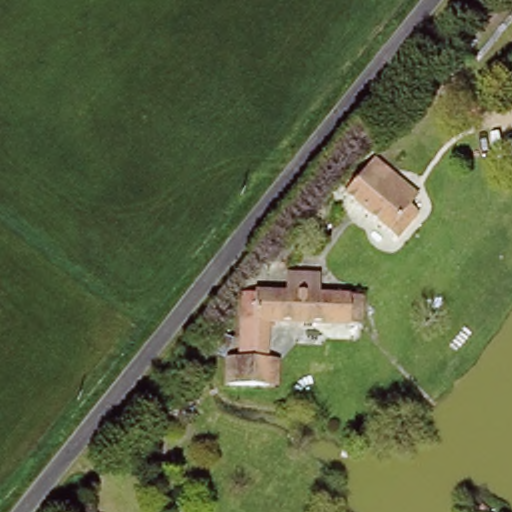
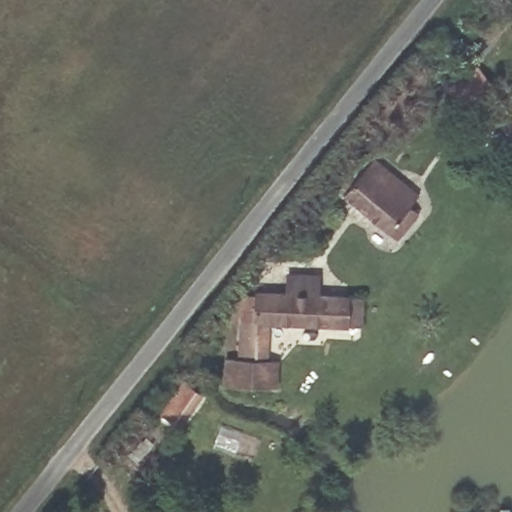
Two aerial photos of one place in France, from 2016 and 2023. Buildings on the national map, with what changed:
unchanged [(422,194),(413,206),(420,212),(399,239),(341,190),(339,187),(338,185),(337,182),(338,179),(340,176),(341,174),(345,172),(347,172),(350,172),(353,174),(357,177),(372,157),(399,177),(422,194)]
unchanged [(251,322),(269,322),(268,357),(280,357),(280,387),(222,385),(223,356),(236,356),(240,290),(252,290),(251,322)]
unchanged [(357,292),(357,324),(269,322),(251,322),(252,290),(357,292)]

